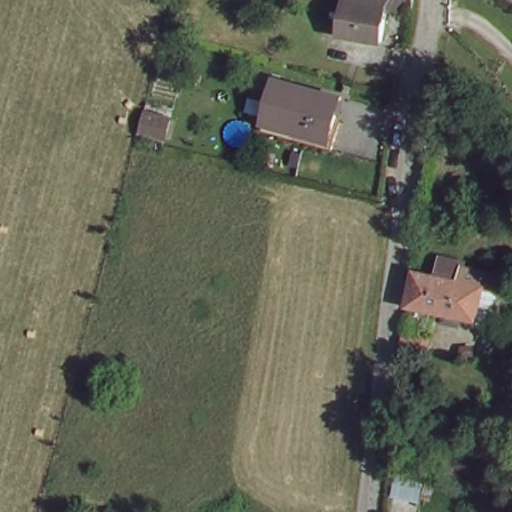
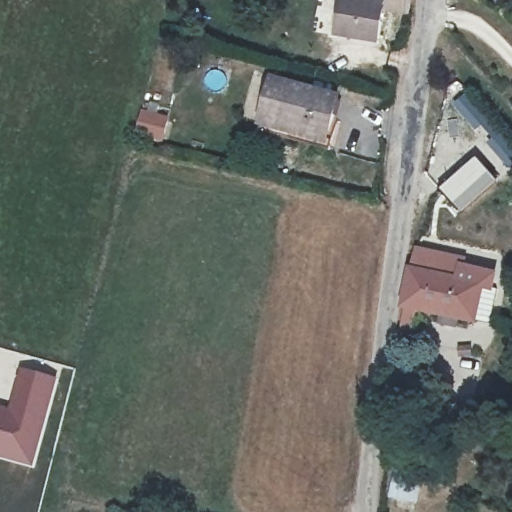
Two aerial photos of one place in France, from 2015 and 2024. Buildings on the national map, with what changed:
unchanged [(342,0),(393,0),(381,46),(334,34),(342,0)]
unchanged [(263,126),(266,115),(276,75),(341,94),(330,136),(327,145),(263,126)]
unchanged [(165,120),(159,136),(134,130),(138,112),(165,120)]
unchanged [(436,257),(463,266),(493,272),(491,290),(483,286),(478,315),(460,312),(457,325),(438,319),(439,308),(407,298),(415,268),(432,272),(436,257)]
unchanged [(429,343),(425,362),(398,355),(402,336),(429,343)]
new [(0,459),(0,407),(10,410),(20,369),(58,380),(34,469),(0,459)]

